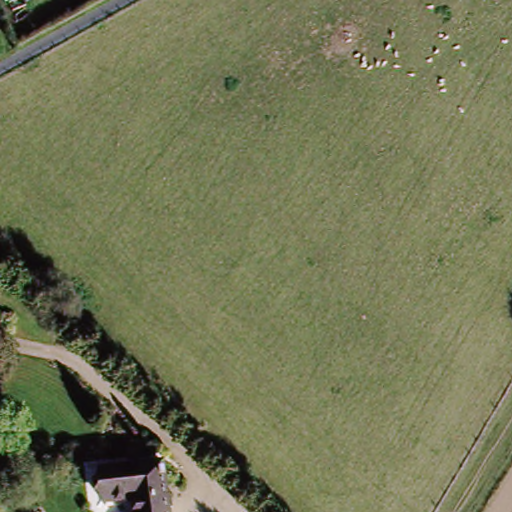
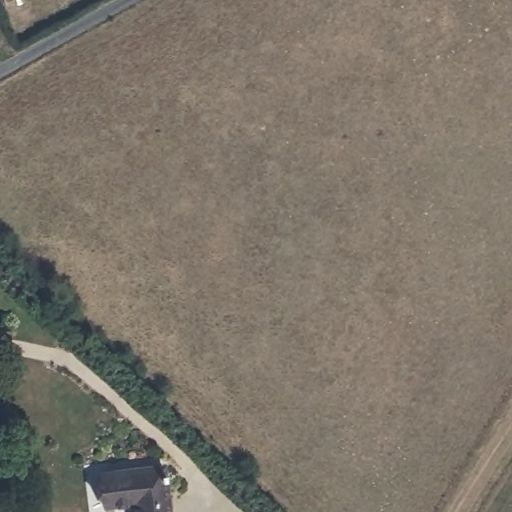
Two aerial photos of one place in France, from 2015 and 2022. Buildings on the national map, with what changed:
unchanged [(163,512),(130,512),(129,506),(103,511),(98,477),(154,468),(163,512)]

